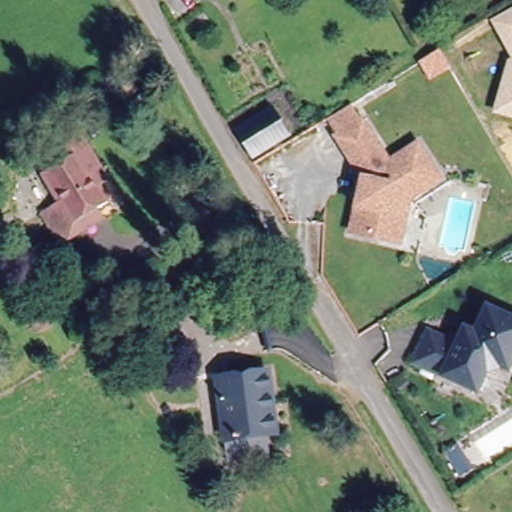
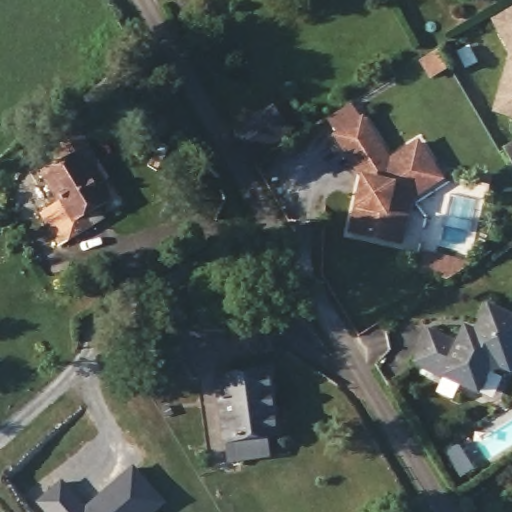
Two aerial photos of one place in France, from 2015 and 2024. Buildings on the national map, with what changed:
unchanged [(491,19),(512,8),(512,55),(491,19)]
unchanged [(497,112),(510,62),(512,61),(512,116),(497,112)]
unchanged [(381,235),(351,228),(365,175),(339,131),(338,131),(328,114),(331,112),(355,98),(365,115),(391,158),(420,140),(442,177),(411,196),(410,199),(407,210),(400,240),(381,235)]
unchanged [(232,125),(270,104),(285,130),(249,152),(232,125)]
unchanged [(105,177),(100,183),(110,201),(94,211),(97,218),(57,243),(37,211),(54,201),(39,173),(62,159),(50,137),(75,123),(105,177)]
unchanged [(197,274),(209,294),(195,302),(197,305),(160,328),(146,305),(197,274)]
unchanged [(431,325),(460,339),(467,323),(478,328),(490,302),(512,313),(512,362),(510,366),(500,361),(490,364),(478,387),(416,357),(431,325)]
unchanged [(225,458),(215,373),(269,367),(271,389),(277,434),(265,436),(267,455),(225,458)]
new [(133,464),(166,502),(155,512),(44,512),(35,500),(61,478),(84,505),(133,464)]

